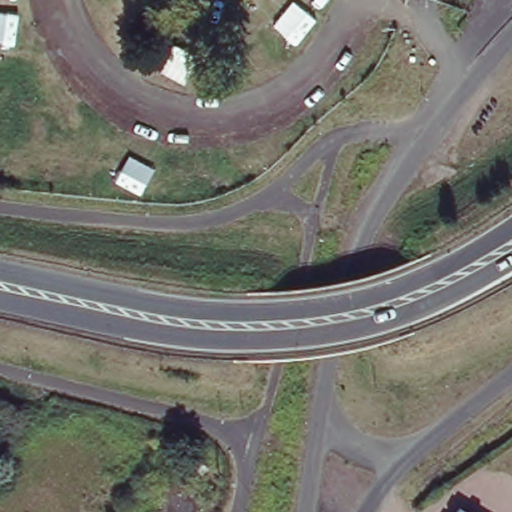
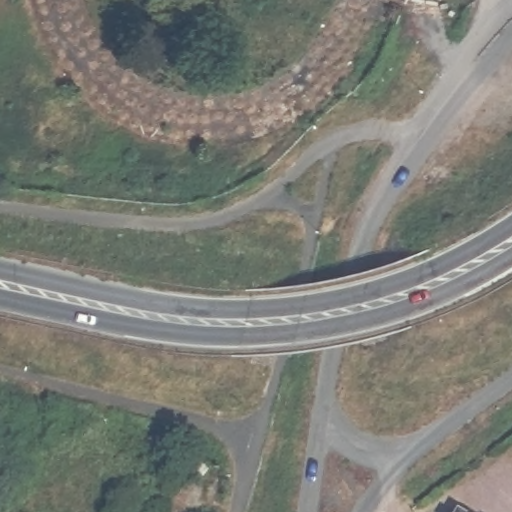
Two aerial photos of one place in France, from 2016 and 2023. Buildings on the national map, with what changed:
unchanged [(462,504),(474,512),(458,512),(462,504)]

